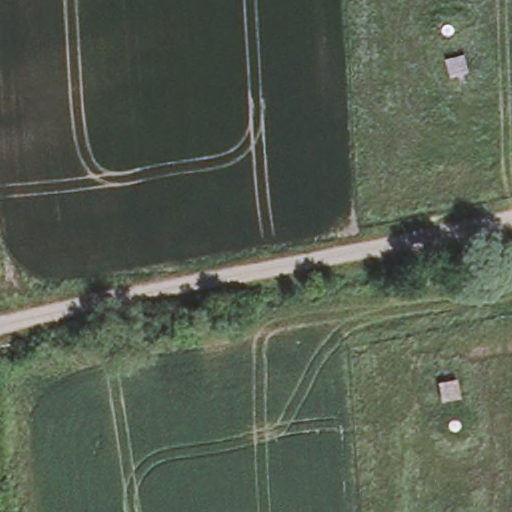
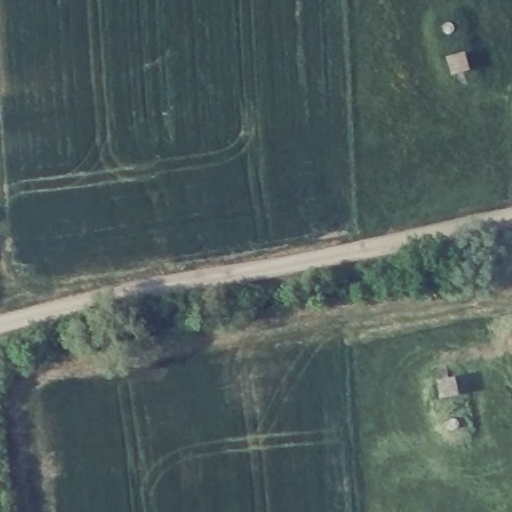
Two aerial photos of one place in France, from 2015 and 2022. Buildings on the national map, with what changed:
unchanged [(439,56),(476,54),(480,82),(441,85),(439,56)]
unchanged [(472,379),(477,403),(444,408),(437,383),(472,379)]

